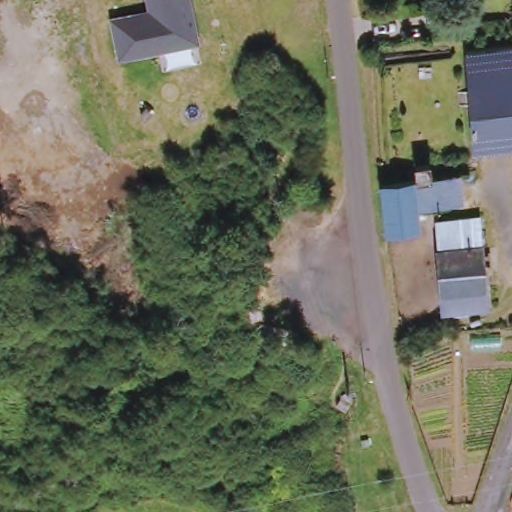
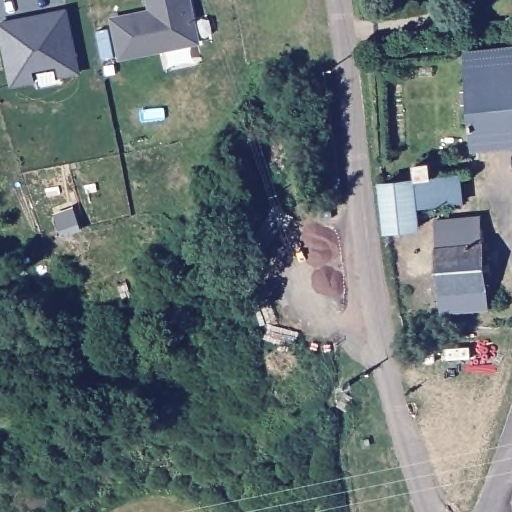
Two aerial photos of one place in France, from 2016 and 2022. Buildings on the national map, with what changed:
unchanged [(120,61),(109,18),(148,9),(147,0),(193,0),(202,45),(120,61)]
new [(58,67),(32,71),(35,84),(11,87),(0,36),(0,21),(68,9),(80,75),(61,78),(58,67)]
unchanged [(475,147),(463,55),(512,49),(512,143),(475,147)]
unchanged [(425,168),(426,180),(413,181),(412,170),(425,168)]
unchanged [(410,184),(415,231),(386,236),(381,187),(410,184)]
unchanged [(477,217),(489,305),(443,311),(434,222),(477,217)]

